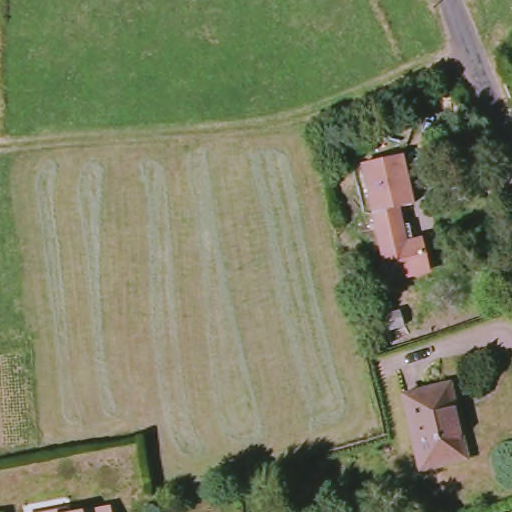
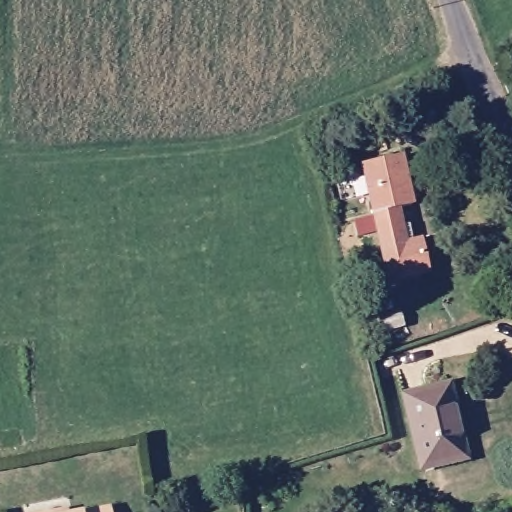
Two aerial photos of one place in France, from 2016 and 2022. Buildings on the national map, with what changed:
unchanged [(375,212),(364,164),(402,155),(413,203),(399,206),(407,242),(422,238),(429,270),(391,279),(375,212)]
unchanged [(370,317),(396,309),(400,324),(375,332),(370,317)]
unchanged [(413,434),(402,398),(448,386),(458,420),(413,434)]
unchanged [(458,420),(468,459),(424,471),(413,434),(458,420)]
unchanged [(108,512),(97,512),(107,510),(108,512)]

